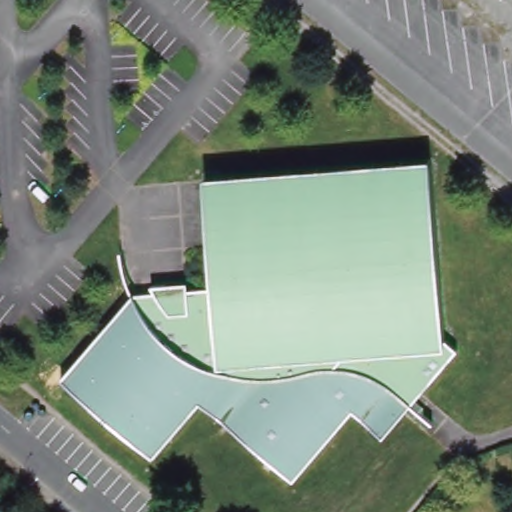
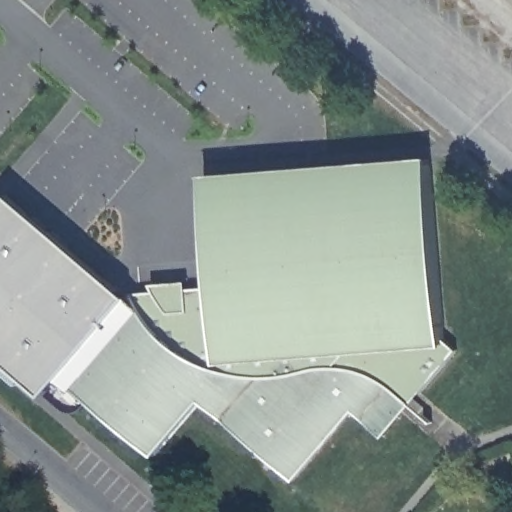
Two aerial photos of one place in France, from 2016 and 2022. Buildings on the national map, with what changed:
unchanged [(204,177),(430,159),(431,164),(270,177),(205,182),(204,177)]
unchanged [(371,429),(352,413),(293,482),(200,403),(153,457),(61,378),(133,294),(155,292),(151,286),(187,282),(188,290),(213,288),(205,182),(270,177),(431,164),(445,339),(457,350),(421,393),(382,438),(371,429)]
new [(61,378),(45,395),(0,357),(0,205),(9,194),(131,297),(61,378)]

